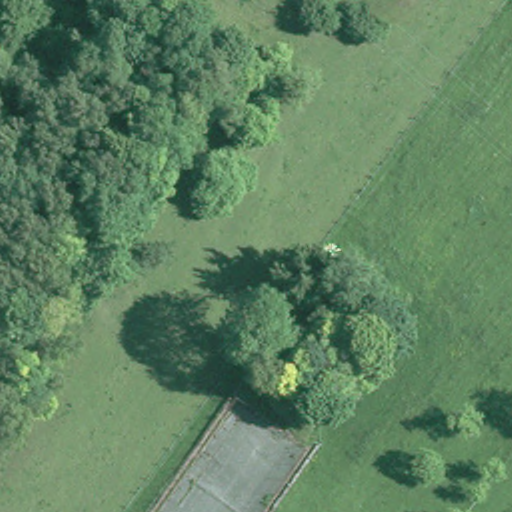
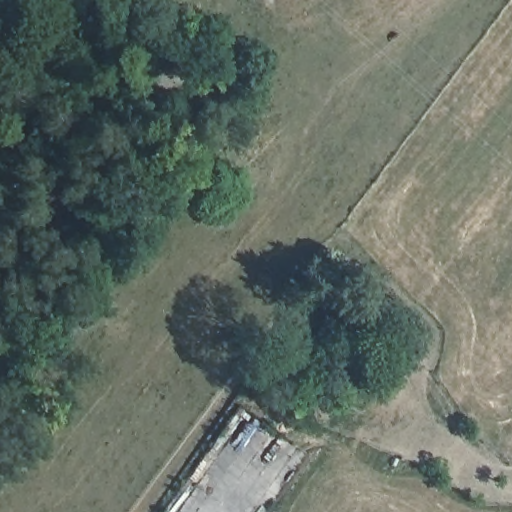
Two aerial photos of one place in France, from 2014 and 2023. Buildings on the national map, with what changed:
unchanged [(90,241),(87,228),(100,223),(105,235),(90,241)]

